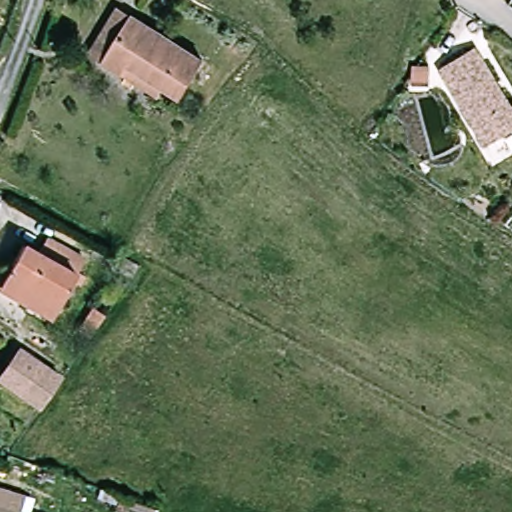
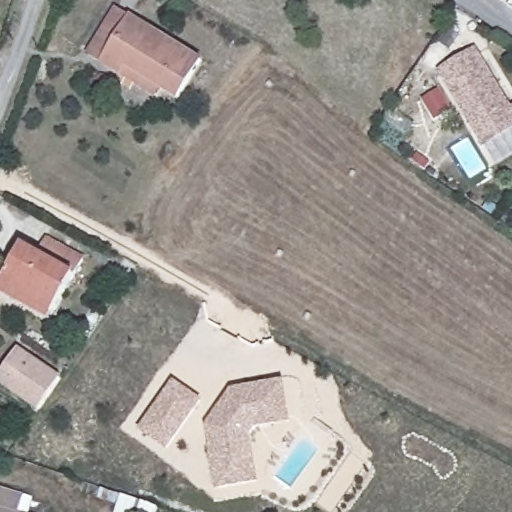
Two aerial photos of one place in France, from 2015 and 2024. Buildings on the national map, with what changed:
unchanged [(203,62),(178,100),(162,90),(156,99),(88,55),(118,9),(203,62)]
unchanged [(512,106),(512,165),(500,172),(485,146),(483,147),(436,71),(477,47),(512,106)]
unchanged [(0,285),(0,284),(23,244),(38,253),(47,239),(85,260),(54,314),(50,322),(0,294),(0,285)]
unchanged [(0,385),(0,378),(18,351),(60,380),(38,411),(0,385)]
new [(271,381),(286,378),(292,418),(278,420),(258,424),(252,431),(259,478),(218,484),(210,423),(235,386),(271,381)]
new [(176,379),(203,398),(169,445),(143,427),(176,379)]
unchanged [(20,512),(0,512),(0,488),(25,495),(20,512)]

